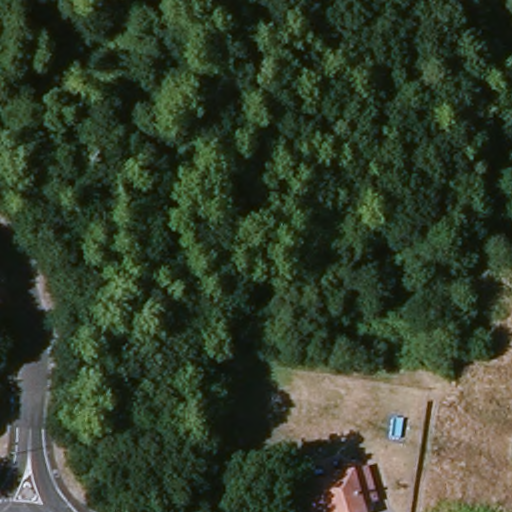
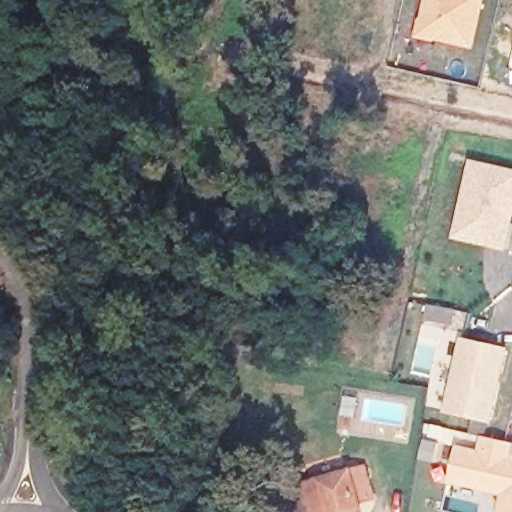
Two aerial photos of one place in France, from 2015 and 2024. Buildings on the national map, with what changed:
new [(423,0),(484,0),(473,49),(415,36),(423,0)]
new [(512,170),(512,232),(508,251),(450,239),(470,160),(512,170)]
new [(510,349),(493,425),(445,414),(462,337),(510,349)]
new [(481,436),(512,442),(512,457),(512,512),(497,512),(502,495),(449,484),(458,445),(480,450),(481,436)]
unchanged [(362,512),(315,512),(308,486),(365,469),(374,498),(360,502),(362,512)]

